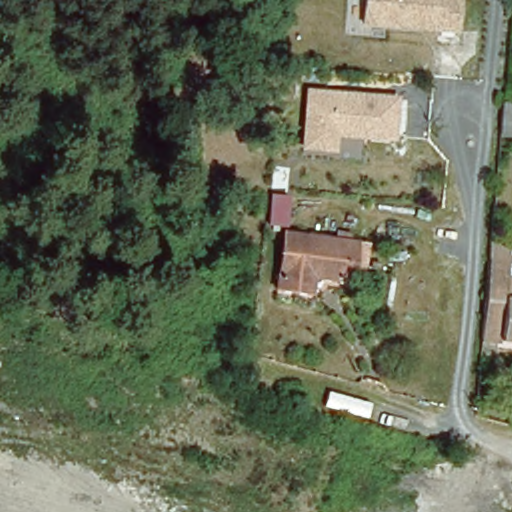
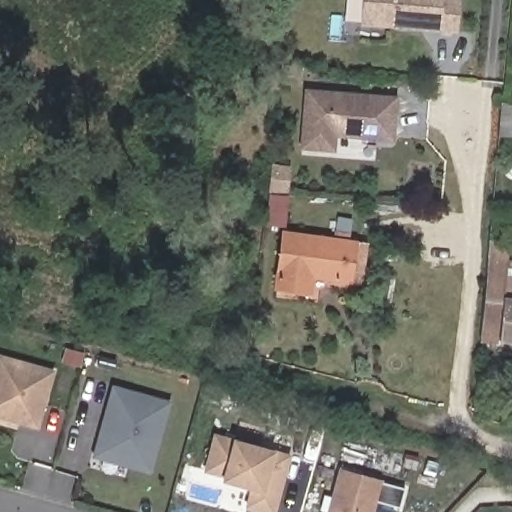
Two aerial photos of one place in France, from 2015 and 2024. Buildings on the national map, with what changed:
unchanged [(361,27),(363,0),(461,0),(459,35),(361,27)]
unchanged [(395,142),(336,137),(336,152),(300,150),(306,89),(400,96),(395,142)]
unchanged [(512,135),(498,134),(501,100),(512,103),(512,135)]
unchanged [(489,241),(491,221),(512,222),(512,227),(511,243),(509,265),(512,265),(512,336),(482,333),(489,241)]
unchanged [(310,290),(278,286),(285,229),(344,237),(345,234),(359,236),(359,239),(368,240),(363,280),(353,278),(313,273),(310,290)]
new [(39,430),(0,419),(0,354),(57,370),(39,430)]
new [(152,474),(93,458),(113,387),(173,402),(152,474)]
new [(278,512),(261,512),(246,508),(252,490),(222,482),(223,477),(205,472),(215,433),(233,437),(276,450),(293,455),(278,512)]
new [(375,512),(328,512),(340,468),(385,480),(375,512)]

